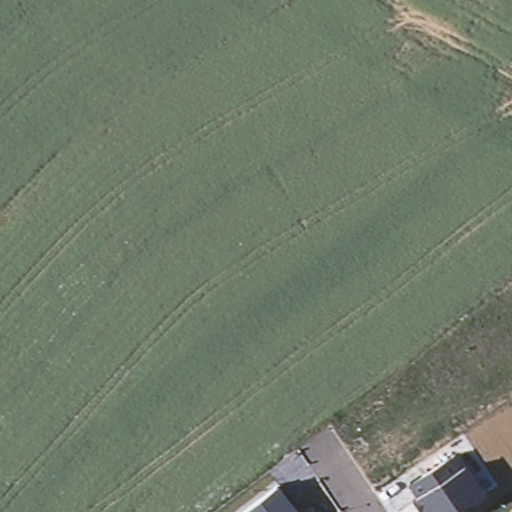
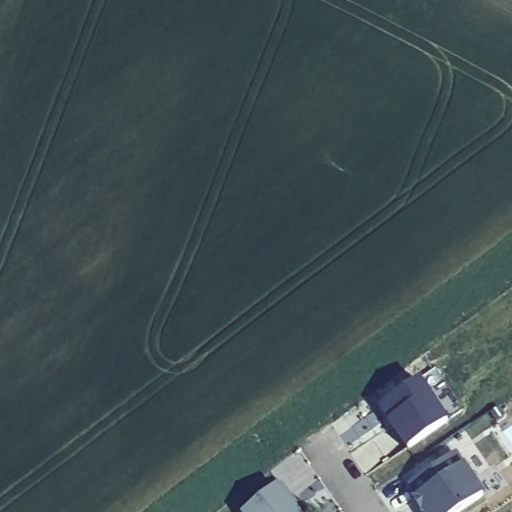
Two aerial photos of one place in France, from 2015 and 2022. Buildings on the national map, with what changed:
new [(449,421),(408,448),(391,420),(381,408),(423,382),(449,421)]
unchanged [(461,512),(419,512),(412,500),(418,495),(408,483),(458,450),(487,494),(461,512)]
unchanged [(277,508),(274,510),(275,512),(245,512),(266,495),(277,508)]

